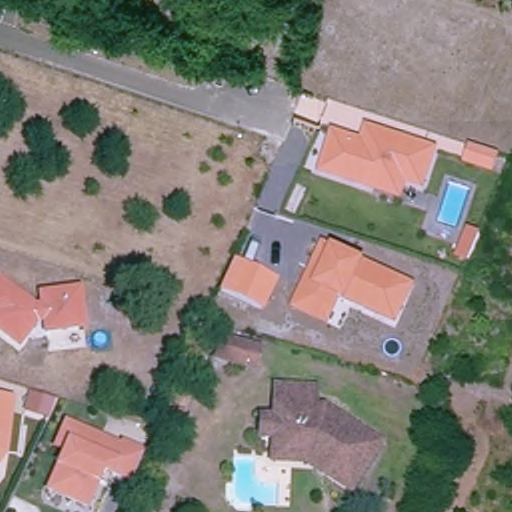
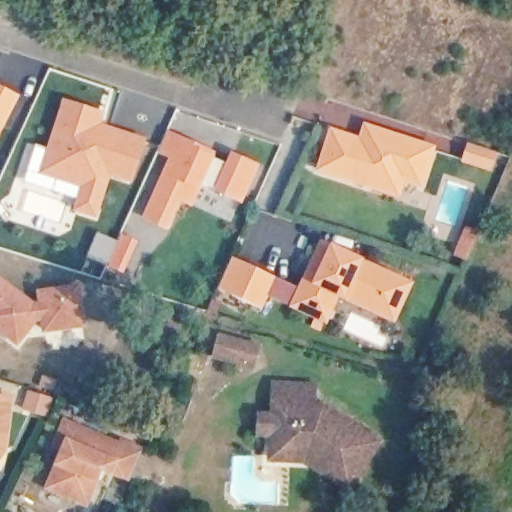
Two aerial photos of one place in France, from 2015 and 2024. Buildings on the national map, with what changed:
new [(0,135),(0,90),(20,98),(0,135)]
new [(101,126),(146,140),(133,182),(109,177),(96,220),(74,212),(80,188),(39,175),(64,101),(104,112),(101,126)]
unchanged [(333,130),(360,137),(362,125),(436,146),(423,186),(408,183),(403,197),(318,175),(333,130)]
new [(217,151),(215,158),(227,163),(231,151),(260,164),(242,203),(202,186),(193,207),(181,202),(168,231),(142,219),(169,157),(159,153),(167,131),(217,151)]
unchanged [(468,145),(498,154),(492,172),(463,162),(468,145)]
unchanged [(482,232),(470,263),(456,257),(467,229),(482,232)]
unchanged [(331,246),(364,262),(416,283),(394,323),(340,299),(327,323),(290,307),(321,240),(331,246)]
unchanged [(278,280),(263,312),(218,289),(233,258),(278,280)]
unchanged [(15,288),(38,307),(46,306),(44,294),(82,288),(87,327),(49,332),(48,320),(40,321),(22,344),(0,327),(0,283),(3,280),(15,288)]
unchanged [(215,352),(224,327),(266,342),(256,367),(215,352)]
unchanged [(314,462),(282,464),(266,465),(263,414),(280,413),(279,382),(319,381),(320,405),(333,405),(390,438),(365,478),(359,488),(314,462)]
unchanged [(54,397),(49,414),(27,407),(32,391),(54,397)]
unchanged [(7,450),(0,459),(0,395),(13,397),(7,450)]
unchanged [(72,497),(50,487),(66,448),(57,445),(67,421),(123,445),(124,442),(144,450),(132,479),(113,471),(112,473),(107,484),(98,480),(92,495),(88,503),(72,497)]

